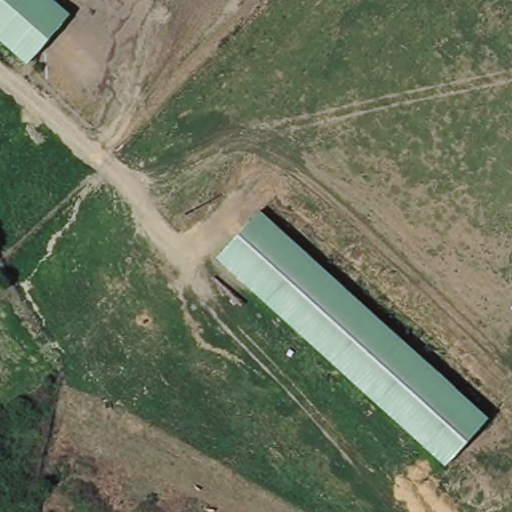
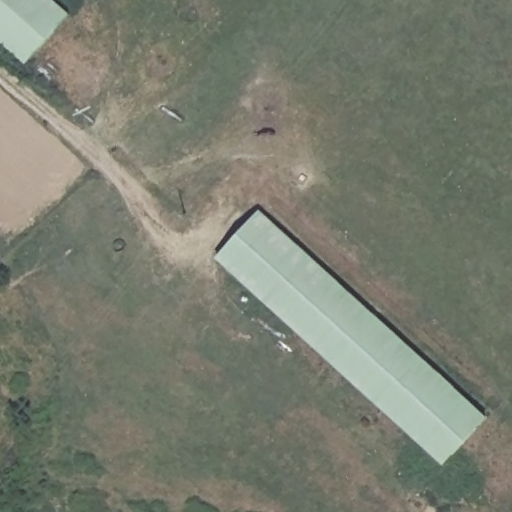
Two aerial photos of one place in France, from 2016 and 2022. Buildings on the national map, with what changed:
unchanged [(26,60),(0,37),(0,0),(59,0),(69,9),(26,60)]
unchanged [(488,413),(444,462),(215,256),(259,210),(488,413)]

